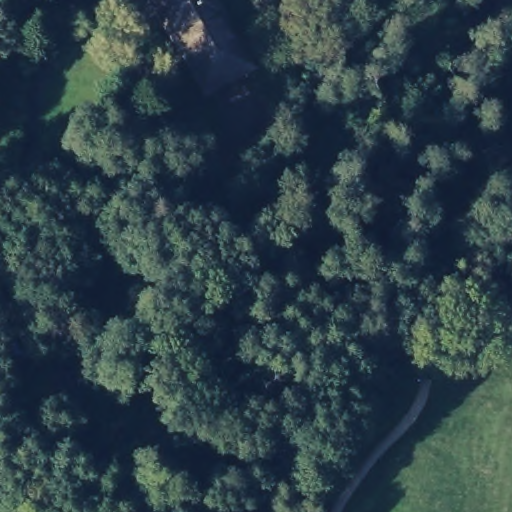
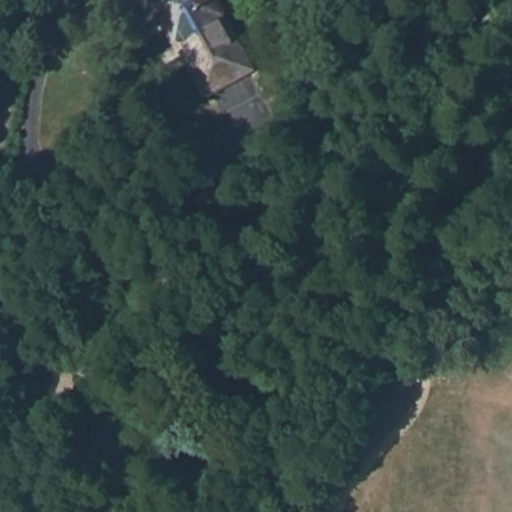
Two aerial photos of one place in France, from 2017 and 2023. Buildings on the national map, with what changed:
unchanged [(258,73),(203,100),(145,0),(213,0),(258,73)]

